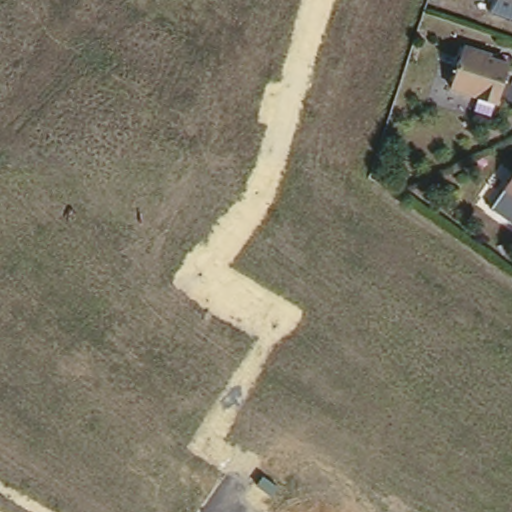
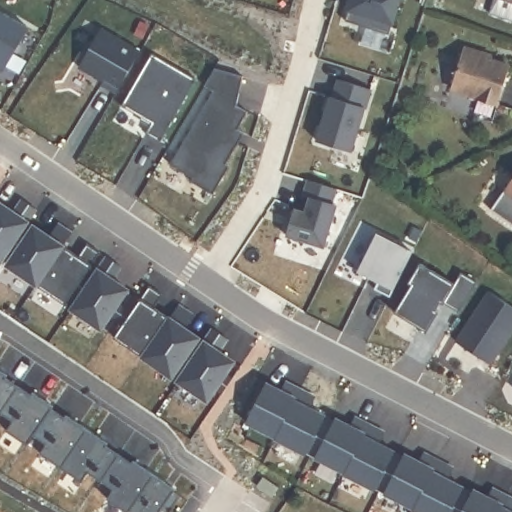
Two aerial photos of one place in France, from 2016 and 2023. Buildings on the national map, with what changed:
new [(389,34),(345,21),(351,0),(400,0),(389,34)]
unchanged [(504,0),(512,0),(512,3),(504,0)]
new [(0,70),(0,11),(28,28),(2,71),(0,70)]
new [(116,92),(101,84),(103,81),(79,66),(101,29),(140,52),(116,92)]
unchanged [(485,53),(484,59),(512,68),(512,70),(498,107),(473,99),(474,96),(452,90),(466,48),(485,53)]
new [(226,164),(229,166),(212,194),(190,181),(192,178),(169,165),(213,91),(204,86),(214,69),(244,77),(236,106),(247,112),(237,129),(244,133),(243,134),(238,143),(226,164)]
new [(320,127),(323,126),(327,114),(325,110),(329,97),(332,97),(337,80),(370,90),(364,108),(363,108),(350,151),(316,141),(320,127)]
new [(336,189),(332,203),(336,205),(323,247),(286,235),(294,209),(305,213),(310,198),(303,196),(308,180),(336,189)]
unchanged [(512,222),(492,208),(512,181),(512,222)]
new [(22,200),(36,209),(1,261),(0,260),(0,203),(13,212),(22,200)]
new [(33,226),(49,236),(57,224),(71,233),(36,285),(7,265),(33,226)]
new [(19,234),(25,238),(15,253),(9,249),(19,234)]
new [(411,253),(389,297),(374,290),(377,282),(357,272),(376,235),(411,253)]
new [(78,256),(86,243),(100,253),(65,304),(36,285),(63,246),(78,256)]
new [(120,266),(112,279),(127,289),(100,329),(72,309),(107,257),(120,266)]
new [(426,332),(394,313),(411,285),(408,283),(420,264),(454,284),(461,273),(477,282),(459,313),(443,303),(443,304),(438,312),(426,332)]
new [(89,283),(80,296),(74,292),(83,278),(89,283)]
new [(149,285),(162,295),(154,307),(169,318),(142,357),(113,337),(149,285)]
new [(456,342),(488,292),(512,308),(512,330),(489,364),(456,342)]
new [(118,303),(131,311),(122,324),(110,315),(118,303)]
new [(191,314),(183,327),(198,337),(171,377),(142,357),(178,305),(191,314)]
new [(227,338),(218,351),(233,361),(207,401),(178,381),(213,329),(227,338)]
new [(196,354),(187,368),(180,364),(189,350),(196,354)]
new [(6,372),(19,380),(2,405),(0,404),(0,371),(5,374),(6,372)]
new [(231,379),(222,392),(216,387),(224,375),(231,379)]
new [(507,384),(512,375),(512,387),(507,384)]
new [(32,389),(30,392),(51,405),(35,428),(26,442),(5,429),(15,414),(2,405),(19,380),(32,389)]
new [(275,437),(246,422),(266,383),(280,391),(285,382),(300,389),(294,400),(275,437)]
new [(294,401),(325,416),(305,454),(275,438),(275,437),(294,401)]
new [(52,403),(65,412),(64,414),(84,428),(61,462),(41,449),(48,437),(35,428),(51,405),(52,403)]
new [(335,418),(350,426),(354,417),(369,425),(344,473),(315,457),(335,418)]
new [(369,425),(384,432),(378,444),(394,452),(374,489),(344,474),(344,473),(369,425)]
new [(104,441),(106,440),(119,449),(102,474),(89,465),(82,477),(61,462),(84,428),(104,441)]
new [(132,456),(130,460),(151,473),(128,508),(108,494),(115,483),(102,474),(119,449),(132,456)]
new [(384,493),(404,454),(419,462),(423,453),(438,460),(413,508),(384,493)]
new [(453,468),(447,479),(463,487),(450,512),(418,512),(413,509),(413,508),(438,460),(453,468)]
new [(171,487),(173,485),(179,490),(166,512),(160,512),(156,509),(155,512),(134,512),(128,508),(151,473),(171,487)]
new [(263,476),(279,487),(272,496),(257,485),(263,476)]
new [(487,497),(492,488),(507,496),(499,512),(462,512),(473,490),(487,497)]
new [(512,499),(512,512),(499,512),(507,496),(512,499)]

